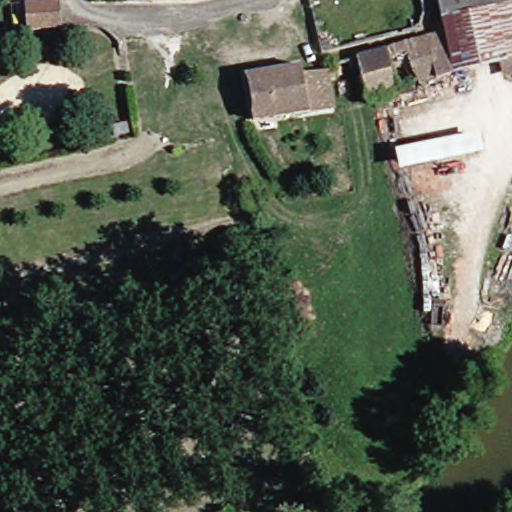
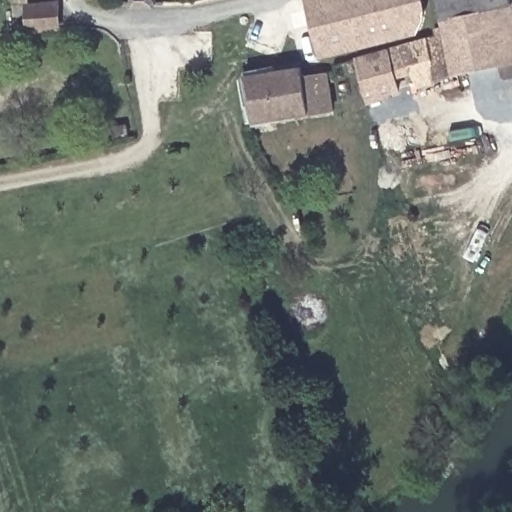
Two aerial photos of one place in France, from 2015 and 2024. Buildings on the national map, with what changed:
unchanged [(127,0),(151,0),(152,2),(127,1),(127,0)]
unchanged [(219,4),(218,0),(238,0),(233,1),(219,4)]
new [(412,36),(382,44),(322,56),(309,0),(419,0),(423,23),(412,36)]
unchanged [(510,0),(512,8),(512,63),(450,80),(433,0),(510,0)]
unchanged [(29,38),(26,11),(56,7),(60,35),(29,38)]
unchanged [(422,49),(433,46),(432,41),(438,40),(448,81),(430,85),(410,90),(362,103),(351,64),(401,54),(422,49)]
unchanged [(252,121),(248,121),(247,117),(252,116),(249,76),(302,68),(302,74),(324,73),(328,108),(257,125),(254,125),(252,121)]

